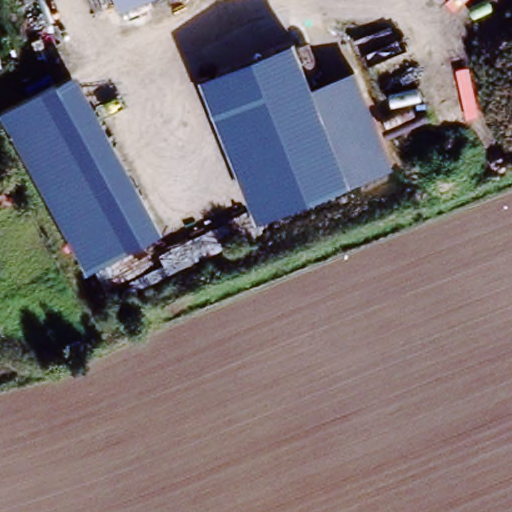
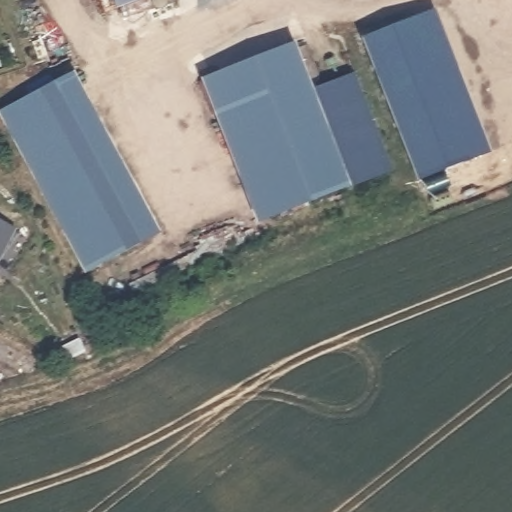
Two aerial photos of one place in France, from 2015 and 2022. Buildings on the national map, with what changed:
unchanged [(112,2),(111,0),(118,0),(112,2)]
new [(424,15),(473,153),(421,175),(367,36),(424,15)]
unchanged [(296,44),(313,92),(357,73),(398,170),(350,184),(259,221),(201,82),(296,44)]
unchanged [(74,69),(161,229),(85,267),(0,119),(0,114),(74,69)]
demolished [(10,199),(0,204),(0,180),(1,179),(10,199)]
new [(12,228),(0,248),(0,221),(12,228)]

